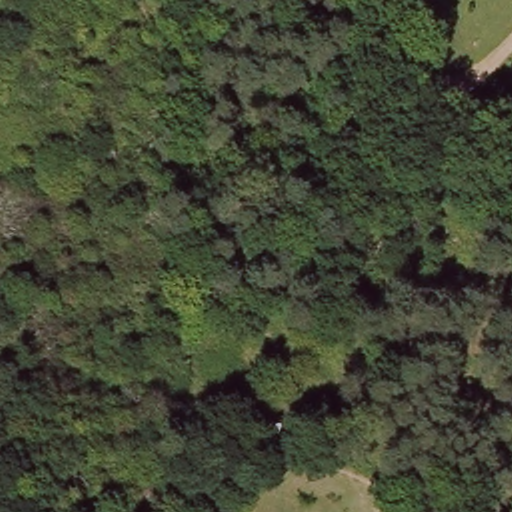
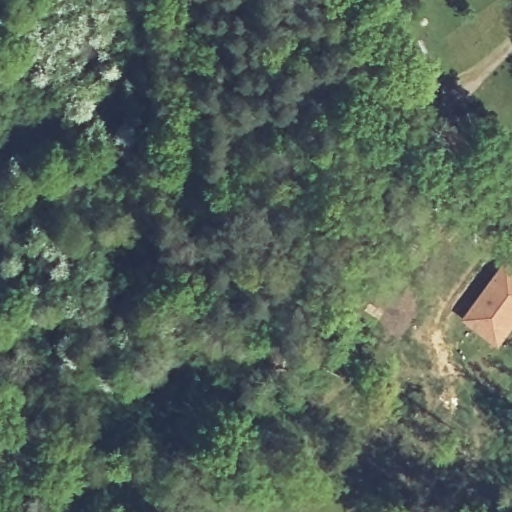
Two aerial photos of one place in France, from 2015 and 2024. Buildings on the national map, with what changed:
new [(507,256),(512,260),(512,329),(497,348),(460,318),(507,256)]

